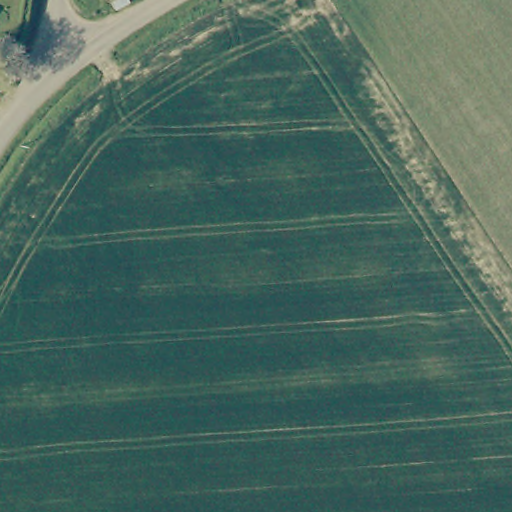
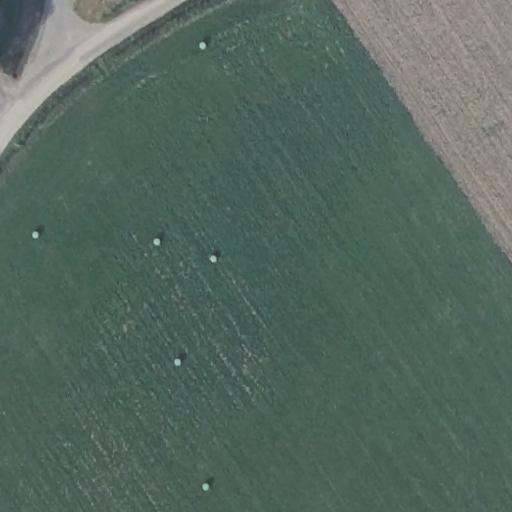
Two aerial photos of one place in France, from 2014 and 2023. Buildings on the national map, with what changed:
[]

